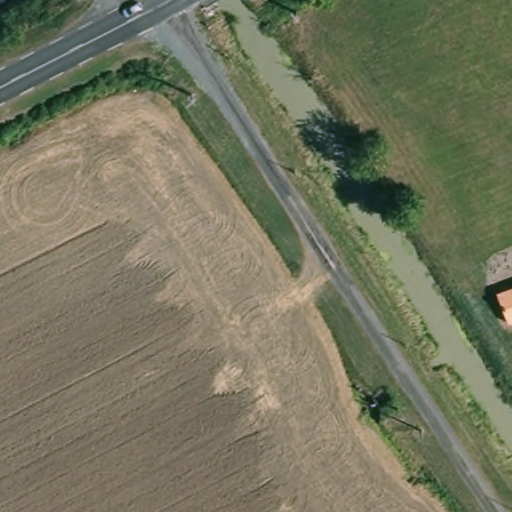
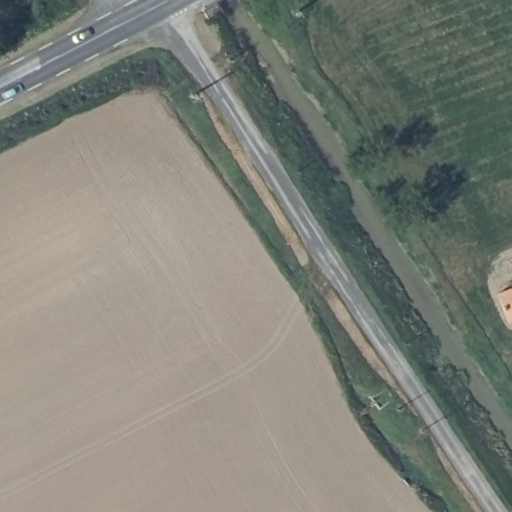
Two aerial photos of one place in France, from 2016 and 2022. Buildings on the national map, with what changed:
unchanged [(502,318),(491,288),(512,281),(512,315),(502,318)]

